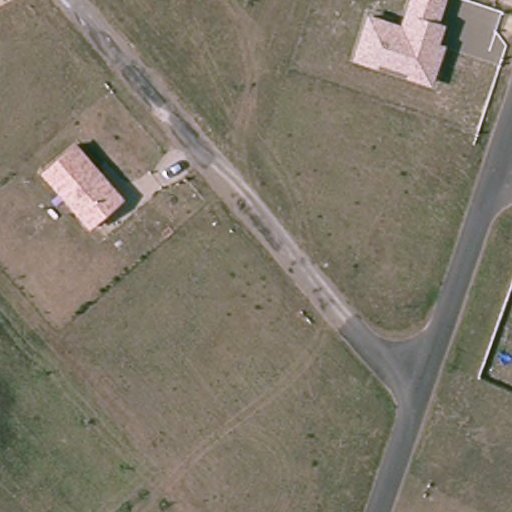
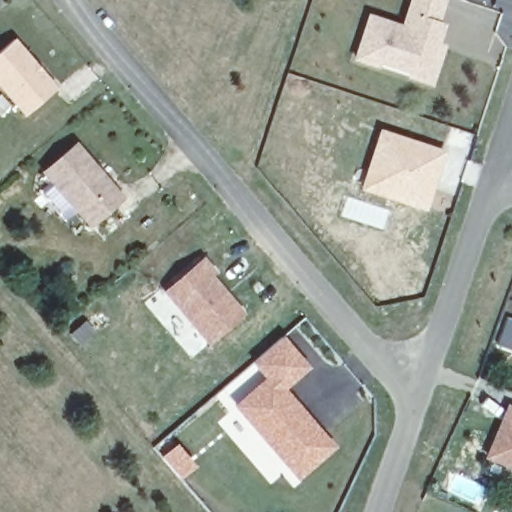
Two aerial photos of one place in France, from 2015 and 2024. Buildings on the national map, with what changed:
unchanged [(406,79),(407,73),(381,65),(379,70),(354,62),(369,13),(402,24),(410,0),(449,0),(441,22),(447,24),(442,43),(448,44),(433,87),(406,79)]
new [(58,88),(24,117),(12,104),(0,116),(0,93),(1,92),(0,90),(0,50),(14,37),(58,88)]
new [(436,182),(439,173),(445,149),(451,126),(475,133),(466,159),(483,164),(475,187),(458,182),(454,193),(435,187),(436,182)]
new [(379,128),(445,149),(439,173),(439,175),(436,182),(435,187),(425,211),(359,188),(379,128)]
unchanged [(43,173),(77,143),(126,199),(90,230),(43,173)]
new [(217,272),(213,275),(246,314),(207,346),(161,290),(203,254),(217,272)]
new [(283,334),(310,366),(286,389),(337,447),(296,483),(231,405),(221,391),(283,334)]
new [(508,408),(512,410),(512,468),(486,457),(502,422),(508,408)]
new [(177,443),(196,466),(180,479),(161,457),(177,443)]

